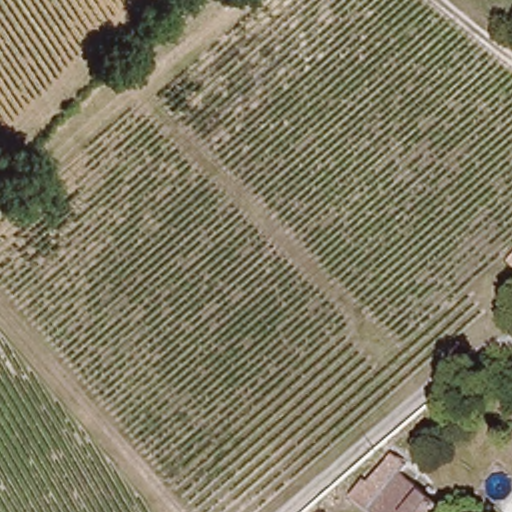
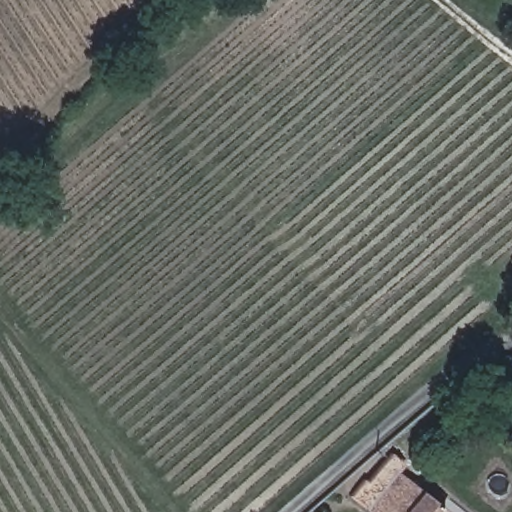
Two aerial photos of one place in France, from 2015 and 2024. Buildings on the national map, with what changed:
unchanged [(512,257),(512,265),(508,260),(512,257)]
unchanged [(346,498),(361,480),(363,482),(379,461),(385,453),(398,464),(392,471),(442,512),(363,512),(346,498)]

